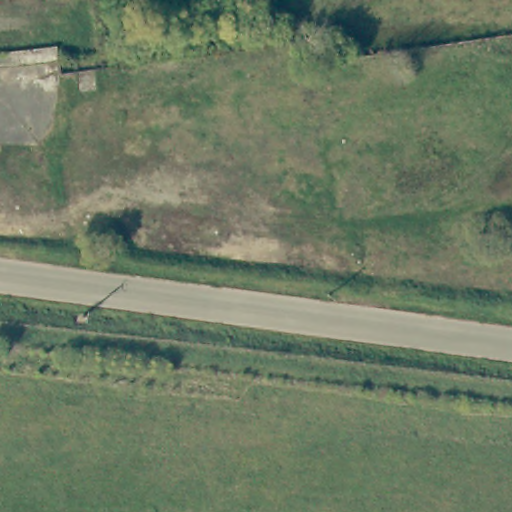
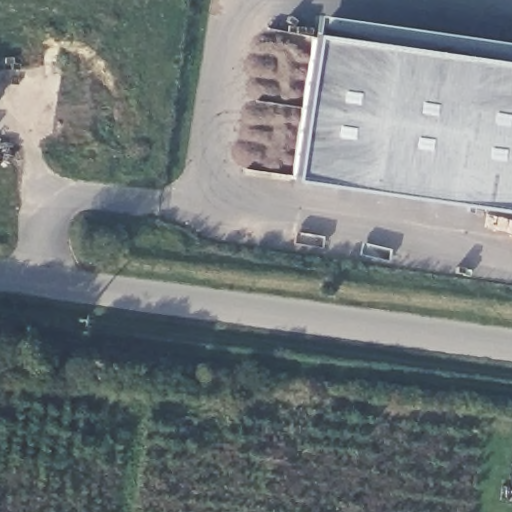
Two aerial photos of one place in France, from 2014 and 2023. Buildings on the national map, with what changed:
new [(314,33),(314,15),(512,44),(512,212),(294,178),(314,33)]
new [(510,484),(512,471),(512,485),(510,484)]

